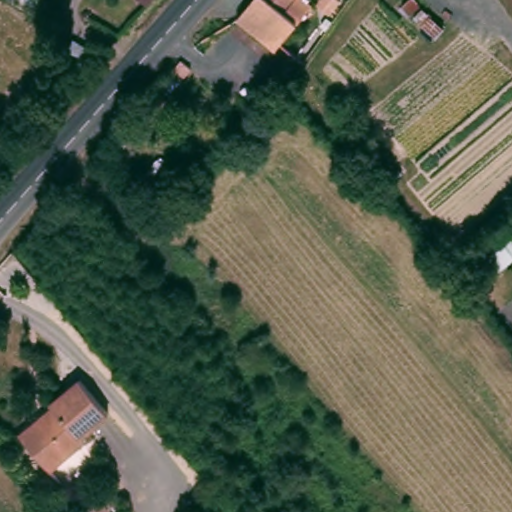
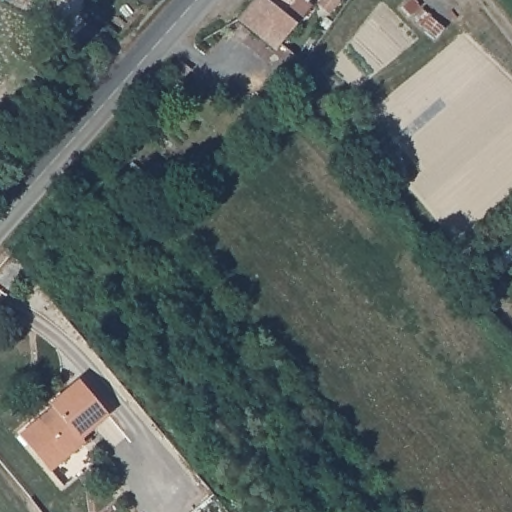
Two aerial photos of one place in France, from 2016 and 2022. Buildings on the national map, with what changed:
unchanged [(312,6),(277,50),(235,20),(251,0),(307,0),(312,6)]
unchanged [(52,404),(85,376),(114,409),(85,434),(90,439),(53,471),(24,436),(56,409),(52,404)]

